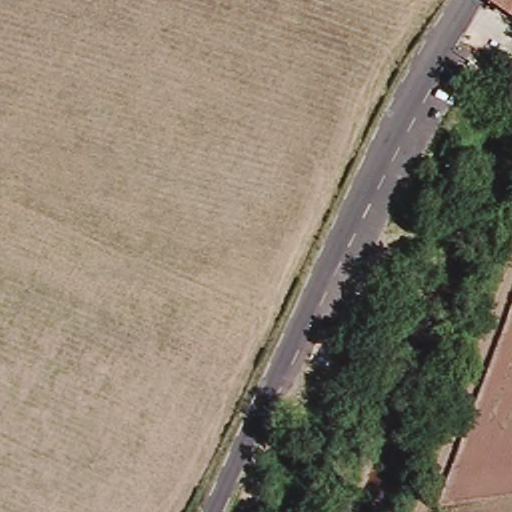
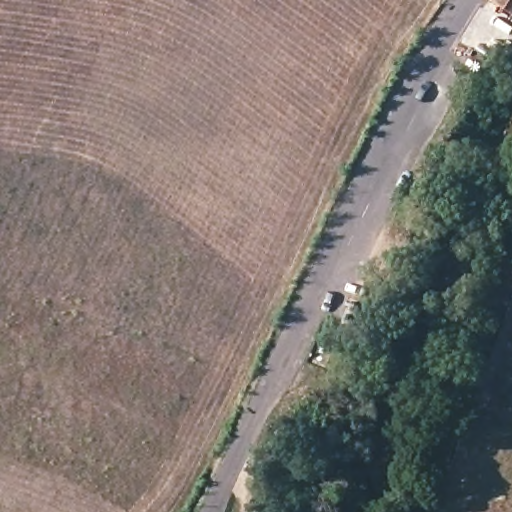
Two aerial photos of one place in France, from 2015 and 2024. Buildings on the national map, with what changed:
unchanged [(512,6),(502,0),(512,0),(512,6)]

